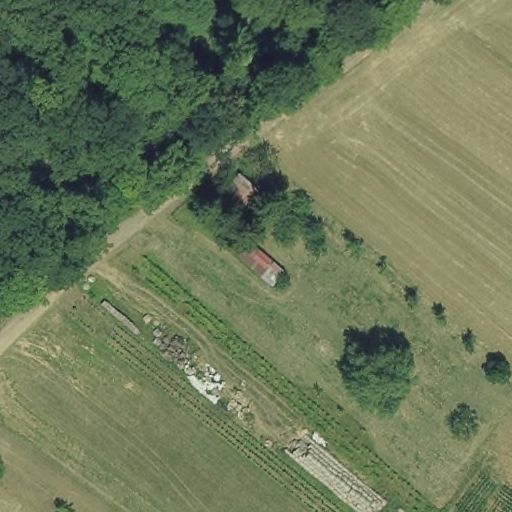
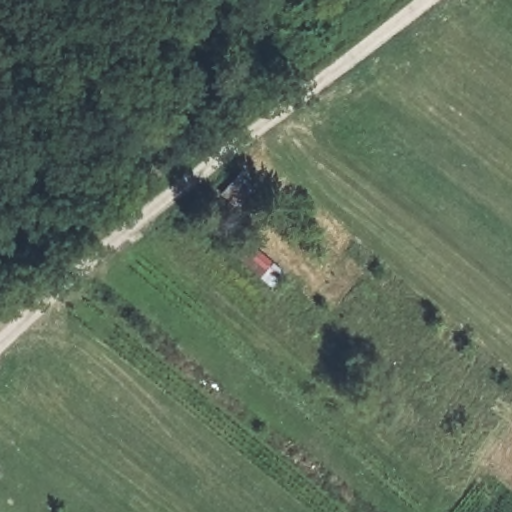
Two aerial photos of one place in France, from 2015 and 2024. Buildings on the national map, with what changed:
unchanged [(233,250),(249,235),(289,271),(274,286),(233,250)]

